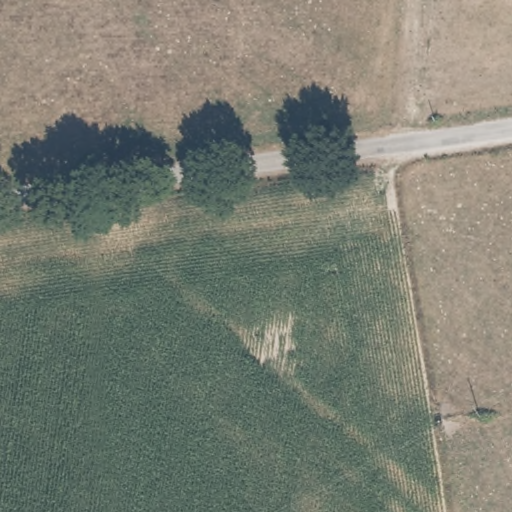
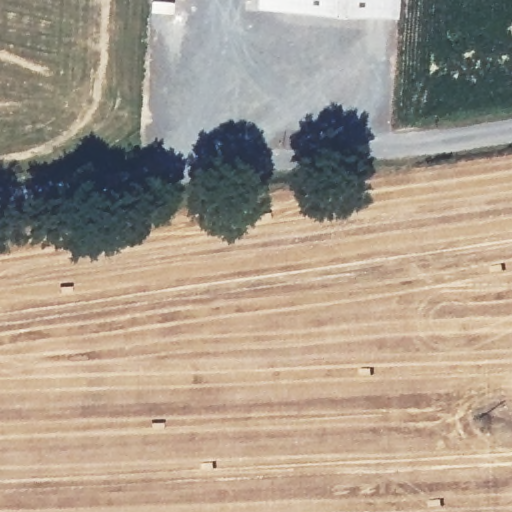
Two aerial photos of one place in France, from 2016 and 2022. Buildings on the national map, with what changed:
new [(256,4),(256,0),(400,0),(399,14),(256,4)]

